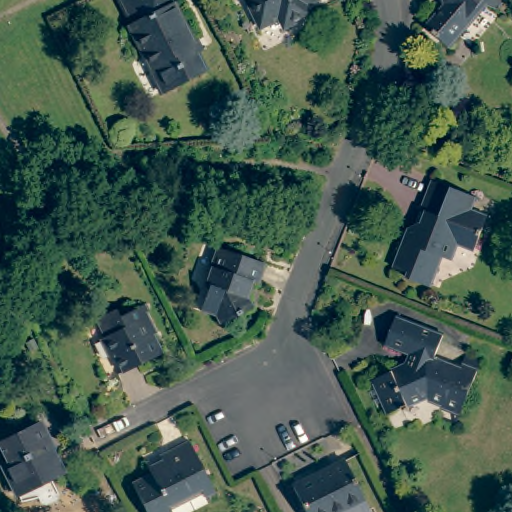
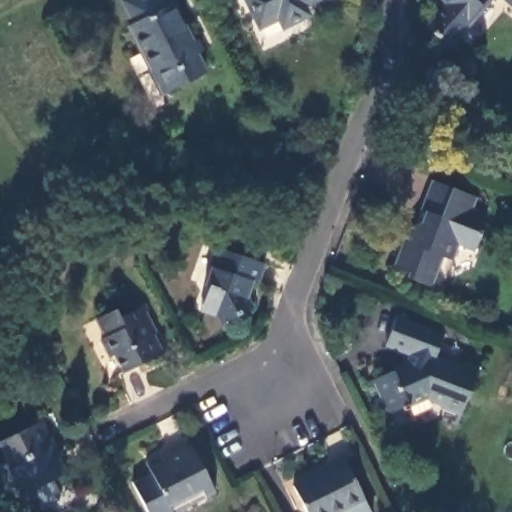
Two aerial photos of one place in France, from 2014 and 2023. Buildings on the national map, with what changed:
unchanged [(150,72),(128,29),(131,27),(117,1),(118,0),(165,0),(169,8),(172,6),(193,46),(191,47),(204,74),(166,93),(162,95),(150,72)]
unchanged [(303,7),(307,15),(282,27),(278,21),(261,29),(246,0),(317,0),(303,7)]
unchanged [(477,2),(481,5),(451,37),(428,17),(444,0),(479,0),(477,2)]
unchanged [(456,241),(449,257),(440,255),(428,285),(407,277),(408,272),(393,266),(408,226),(422,220),(424,211),(419,210),(430,179),(472,195),(467,210),(485,216),(473,248),(456,241)]
unchanged [(266,261),(260,280),(255,279),(251,296),(254,302),(246,306),(246,310),(230,317),(225,306),(207,300),(211,288),(209,281),(222,246),(266,261)]
unchanged [(127,364),(118,347),(113,350),(104,332),(108,330),(99,312),(119,302),(123,310),(138,302),(152,328),(156,326),(165,345),(127,364)]
unchanged [(415,365),(421,351),(414,348),(412,351),(390,342),(401,313),(447,332),(438,355),(463,365),(465,362),(481,367),(465,411),(446,403),(447,398),(432,392),(413,402),(415,405),(408,407),(407,403),(411,401),(408,394),(390,402),(378,376),(409,362),(415,365)]
unchanged [(511,370),(512,366),(512,370),(511,370)]
unchanged [(44,420),(53,437),(49,439),(55,451),(57,448),(69,470),(38,486),(34,479),(19,486),(6,462),(10,459),(2,440),(44,420)]
unchanged [(209,495),(205,487),(172,503),(175,512),(152,512),(136,480),(155,471),(150,461),(153,458),(156,463),(167,457),(164,453),(192,438),(219,490),(209,495)]
unchanged [(362,502),(341,512),(303,512),(291,488),(343,462),(362,502)]

